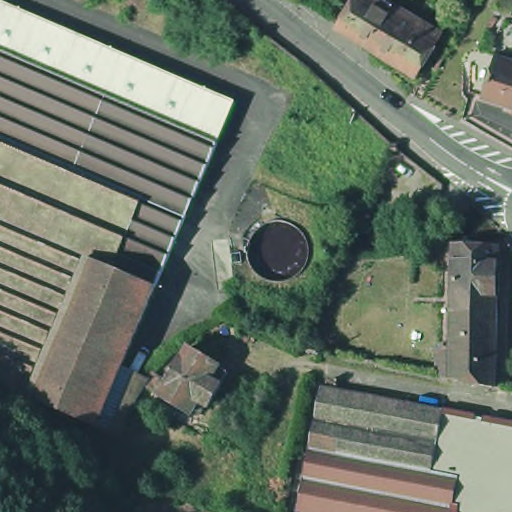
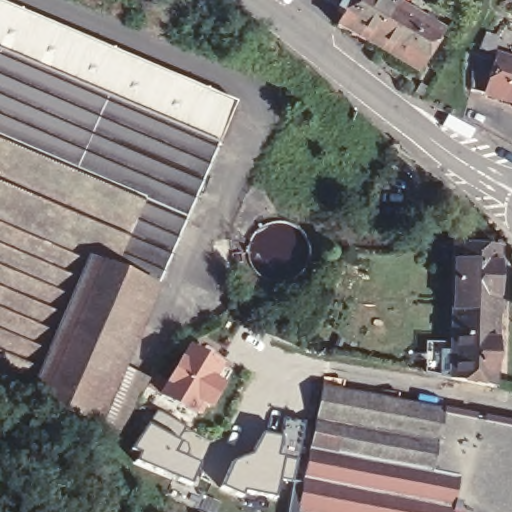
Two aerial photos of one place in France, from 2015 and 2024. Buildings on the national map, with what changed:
unchanged [(147,192),(0,129),(0,41),(0,0),(19,0),(240,94),(229,121),(222,137),(216,152),(158,282),(135,271),(116,263),(147,192)]
unchanged [(342,20),(355,0),(401,0),(447,31),(420,74),(342,20)]
unchanged [(483,87),(497,47),(512,51),(512,96),(483,87)]
unchanged [(0,129),(147,192),(116,263),(135,271),(158,282),(124,363),(100,420),(0,378),(0,129)]
unchanged [(389,150),(389,143),(395,143),(397,149),(389,150)]
unchanged [(433,348),(449,348),(452,245),(497,246),(494,386),(448,377),(433,374),(433,348)]
unchanged [(125,430),(100,420),(124,363),(152,376),(155,369),(169,376),(183,354),(185,355),(192,342),(232,366),(212,400),(209,398),(205,406),(197,403),(194,407),(165,389),(150,380),(136,404),(125,430)]
unchanged [(302,510),(325,385),(512,421),(512,512),(313,512),(302,510)]
new [(156,411),(185,427),(178,439),(187,443),(187,455),(199,463),(191,483),(137,462),(140,452),(135,448),(148,424),(156,411)]
new [(251,454),(264,434),(282,436),(286,419),(307,422),(295,481),(280,478),(275,497),(245,490),(244,495),(220,485),(232,460),(251,454)]
unchanged [(34,504),(41,512),(25,512),(25,511),(34,504)]

